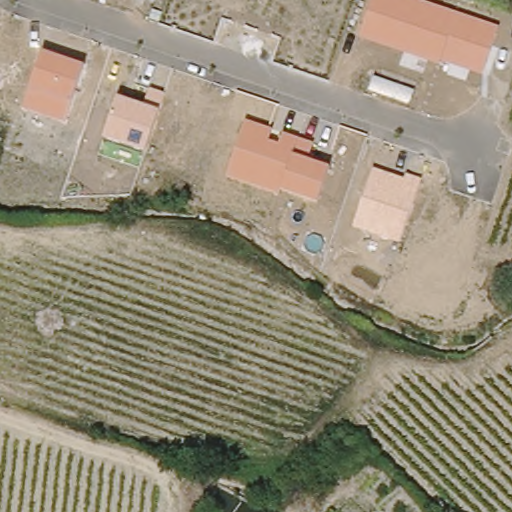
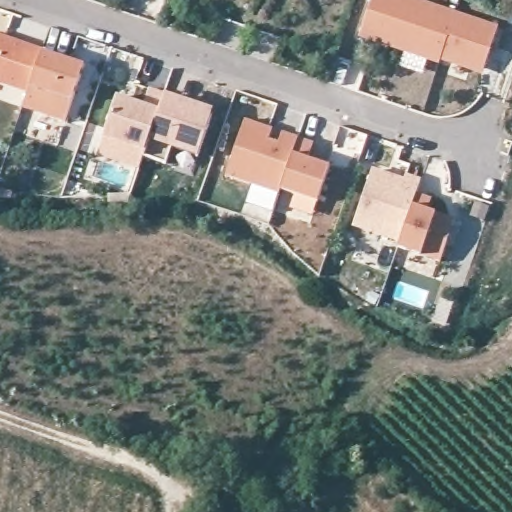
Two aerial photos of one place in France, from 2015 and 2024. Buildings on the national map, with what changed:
unchanged [(419,0),(499,27),(482,75),(441,60),(440,64),(359,37),(372,0),(419,0)]
new [(30,87),(28,91),(0,82),(0,33),(43,47),(42,52),(30,87)]
unchanged [(30,87),(42,52),(86,66),(72,102),(64,122),(22,107),(30,87)]
unchanged [(165,92),(160,110),(146,151),(104,136),(118,96),(145,104),(150,87),(165,92)]
new [(214,109),(198,158),(172,150),(167,164),(145,156),(141,171),(98,157),(104,136),(146,151),(160,110),(165,92),(214,109)]
unchanged [(245,120),(273,129),(270,140),(279,143),(283,132),(314,142),(309,160),(330,167),(317,201),(282,188),(279,193),(227,175),(245,120)]
unchanged [(405,180),(407,174),(421,180),(399,243),(353,227),(373,168),(405,180)]
new [(434,198),(430,210),(437,212),(455,220),(442,261),(422,255),(398,247),(399,243),(417,192),(434,198)]

